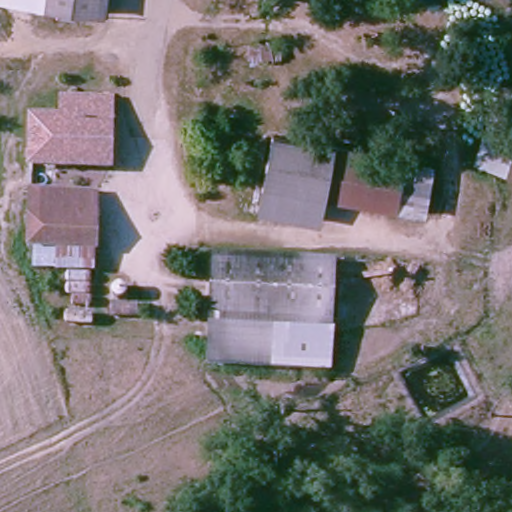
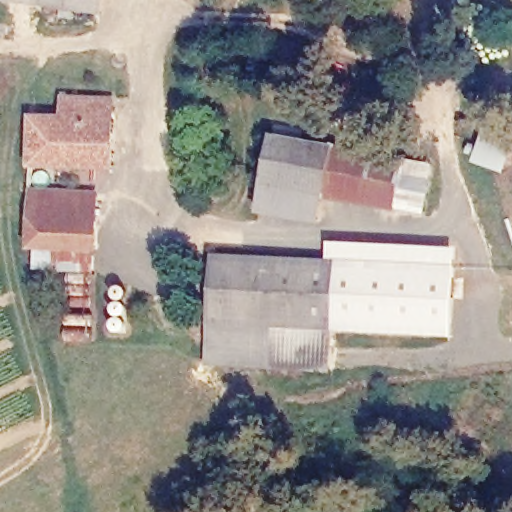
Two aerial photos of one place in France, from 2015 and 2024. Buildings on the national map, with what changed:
unchanged [(0,0),(39,0),(38,9),(0,0)]
unchanged [(104,18),(38,9),(39,0),(107,0),(104,18)]
unchanged [(69,119),(69,99),(121,101),(120,166),(67,167),(67,189),(100,190),(100,186),(108,186),(108,248),(108,255),(102,255),(39,252),(40,185),(42,117),(69,119)]
unchanged [(512,125),(512,153),(505,176),(473,165),(489,118),(512,125)]
unchanged [(272,131),(331,142),(322,189),(316,218),(294,214),(259,208),(267,159),(272,131)]
unchanged [(404,156),(395,203),(322,189),(331,142),(404,156)]
unchanged [(404,156),(436,161),(427,210),(395,203),(404,156)]
new [(339,264),(326,263),(327,241),(454,247),(451,338),(332,331),(339,264)]
unchanged [(206,364),(217,258),(217,255),(319,262),(339,264),(328,373),(312,372),(206,364)]

